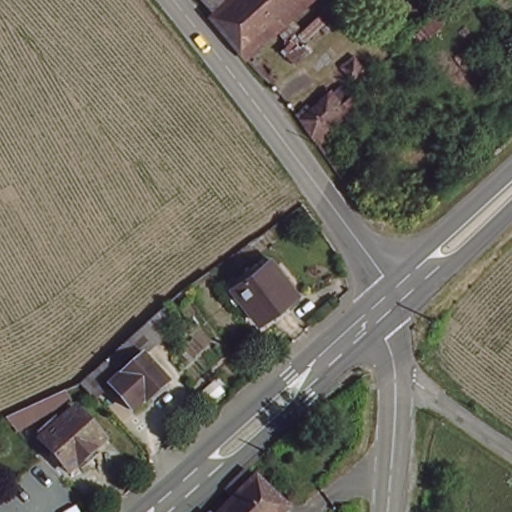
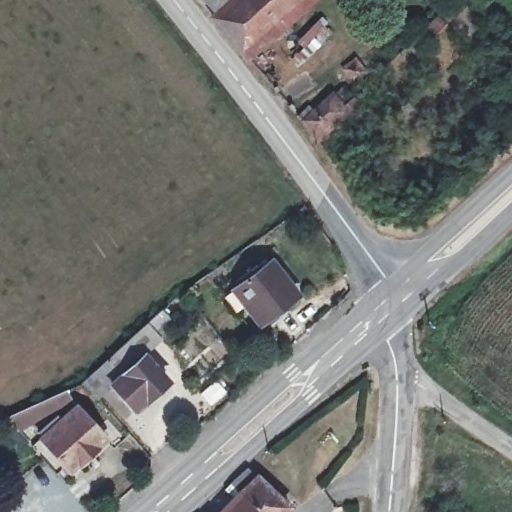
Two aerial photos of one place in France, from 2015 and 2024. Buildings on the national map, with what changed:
unchanged [(240,42),(212,9),(217,5),(222,0),(289,0),(240,42)]
unchanged [(217,5),(213,0),(222,0),(217,5)]
unchanged [(289,0),(318,0),(254,58),(240,42),(289,0)]
unchanged [(344,85),(357,100),(313,137),(300,121),(344,85)]
unchanged [(230,290),(268,261),(295,295),(257,324),(230,290)]
unchanged [(162,336),(145,351),(170,377),(133,405),(112,381),(98,394),(94,389),(92,390),(82,378),(133,334),(148,321),(162,336)]
unchanged [(61,391),(65,396),(16,430),(5,417),(61,391)]
unchanged [(73,407),(102,440),(66,472),(38,439),(40,437),(35,432),(52,417),(56,421),(73,407)]
unchanged [(254,475),(287,506),(281,512),(219,512),(232,497),(223,488),(228,483),(245,468),(252,477),(254,475)]

